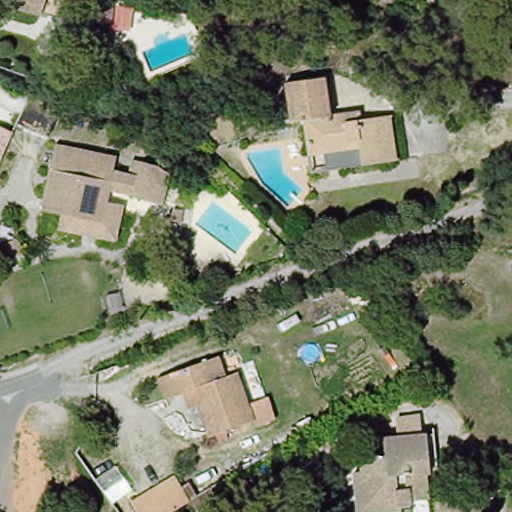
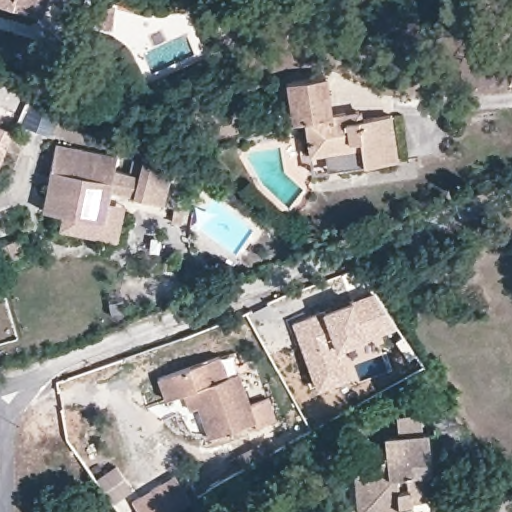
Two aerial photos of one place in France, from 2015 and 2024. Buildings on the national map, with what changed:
unchanged [(43,14),(0,3),(0,0),(49,0),(43,14)]
unchanged [(85,2),(78,0),(85,0),(85,2)]
unchanged [(109,29),(103,30),(95,21),(98,15),(106,9),(109,29)]
unchanged [(325,159),(314,160),(310,127),(291,130),(286,91),(324,87),(328,120),(356,117),(357,127),(388,124),(393,167),(361,171),(327,175),(325,159)]
unchanged [(33,99),(58,109),(47,136),(21,126),(32,99),(33,99)]
unchanged [(5,147),(0,159),(0,119),(15,124),(5,147)]
unchanged [(40,215),(54,149),(119,164),(115,177),(141,183),(143,167),(160,172),(171,183),(165,214),(137,209),(131,203),(109,199),(106,210),(102,226),(62,221),(40,215)]
unchanged [(102,226),(106,210),(125,214),(118,250),(57,237),(62,221),(102,226)]
new [(374,290),(396,326),(381,332),(388,351),(354,365),(358,373),(315,388),(291,322),(374,290)]
unchanged [(208,442),(198,416),(204,413),(197,396),(168,404),(157,382),(219,363),(227,385),(239,382),(258,425),(208,442)]
unchanged [(359,512),(358,509),(351,489),(360,486),(355,467),(381,460),(376,442),(432,424),(442,457),(432,463),(440,493),(417,501),(420,511),(416,512),(359,512)]
unchanged [(140,512),(135,505),(178,478),(192,499),(174,512),(140,512)]

